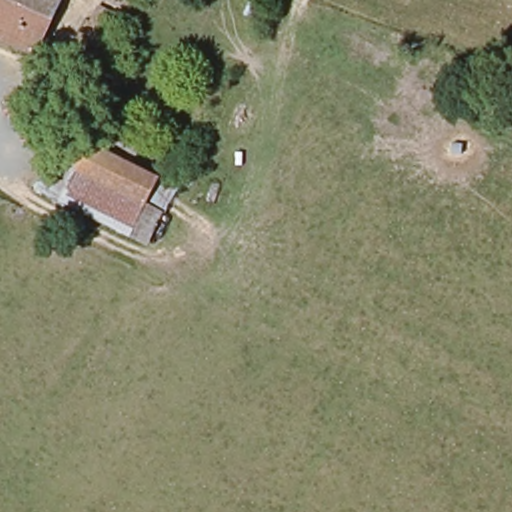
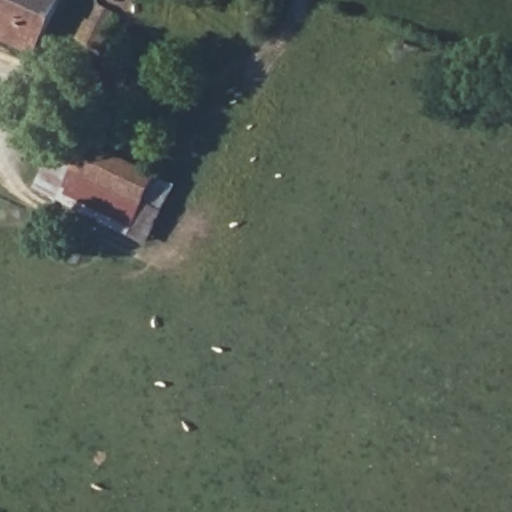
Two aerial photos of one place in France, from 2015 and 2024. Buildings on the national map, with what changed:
unchanged [(0,38),(0,0),(58,0),(33,52),(0,38)]
unchanged [(105,55),(81,44),(88,29),(93,29),(101,9),(121,18),(105,55)]
unchanged [(83,177),(68,208),(51,200),(76,145),(94,153),(83,177)]
unchanged [(161,187),(151,210),(83,177),(94,153),(161,187)]
unchanged [(151,210),(136,241),(68,208),(83,177),(151,210)]

